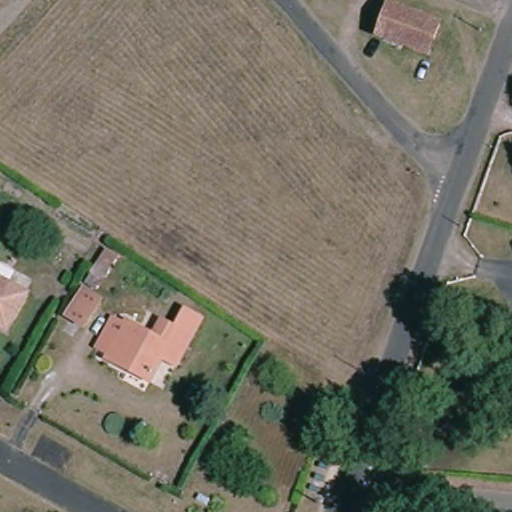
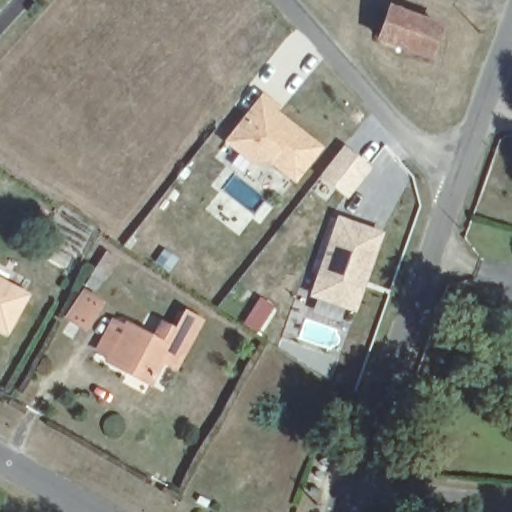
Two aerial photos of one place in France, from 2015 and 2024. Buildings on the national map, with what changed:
unchanged [(446,31),(434,64),(381,45),(394,11),(446,31)]
new [(295,184),(271,165),(252,165),(223,142),(263,92),(279,105),(276,109),(324,146),(295,184)]
new [(319,177),(345,144),(373,165),(348,198),(319,177)]
new [(356,313),(309,296),(337,215),(384,231),(356,313)]
unchanged [(10,332),(0,327),(0,283),(28,298),(10,332)]
unchanged [(104,302),(89,328),(73,318),(88,292),(104,302)]
unchanged [(125,373),(104,361),(108,352),(96,345),(114,315),(152,338),(162,321),(177,330),(187,315),(201,324),(191,340),(173,368),(161,360),(151,377),(146,385),(125,373)]
unchanged [(211,506),(221,512),(208,512),(211,506)]

